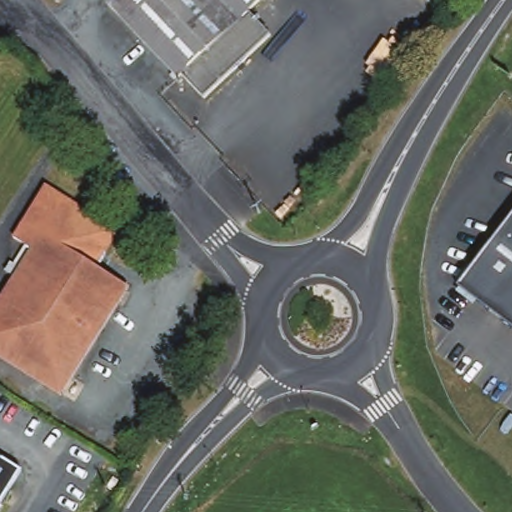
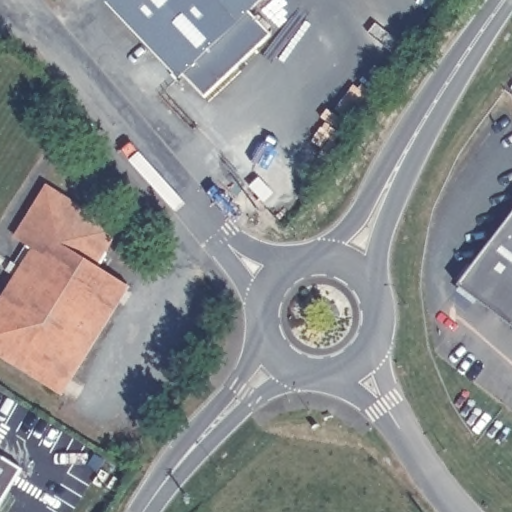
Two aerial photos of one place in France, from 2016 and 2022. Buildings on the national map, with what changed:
unchanged [(255,8),(277,32),(210,97),(187,71),(184,75),(114,0),(263,0),(255,8)]
unchanged [(122,229),(108,251),(111,254),(102,267),(131,287),(64,393),(0,353),(0,302),(35,247),(17,236),(50,185),(122,229)]
unchanged [(512,219),(512,325),(461,286),(512,219)]
unchanged [(24,466),(0,503),(0,452),(24,466)]

